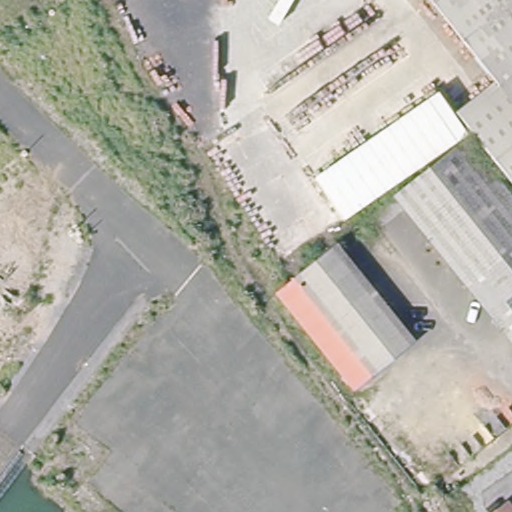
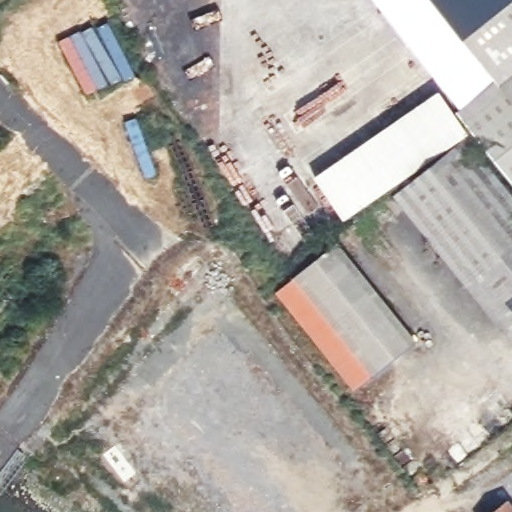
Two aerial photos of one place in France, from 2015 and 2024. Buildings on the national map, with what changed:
new [(460,108),(374,0),(435,0),(512,98),(512,120),(509,116),(479,140),(456,111),(460,108)]
unchanged [(435,0),(512,0),(512,98),(435,0)]
unchanged [(313,177),(437,90),(466,130),(342,218),(313,177)]
unchanged [(509,116),(512,120),(512,190),(475,143),(509,116)]
unchanged [(512,196),(512,343),(395,198),(467,140),(512,196)]
unchanged [(328,250),(406,346),(363,380),(286,283),(328,250)]
unchanged [(512,500),(512,512),(495,512),(512,499),(512,500)]

